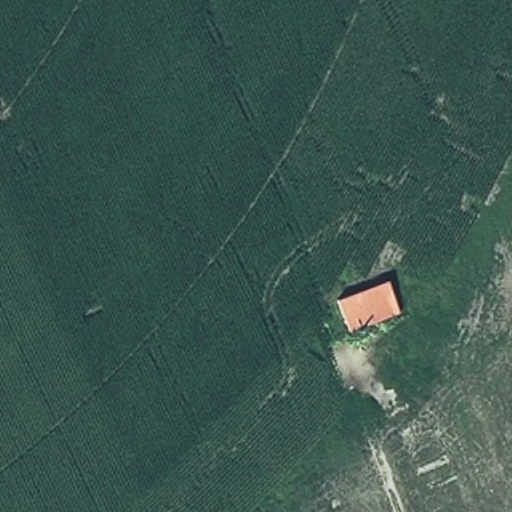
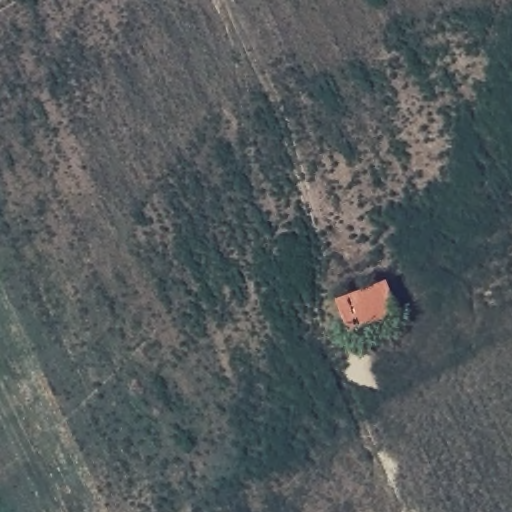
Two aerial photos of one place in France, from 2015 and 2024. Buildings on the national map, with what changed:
unchanged [(395,315),(346,333),(335,304),(383,286),(395,315)]

